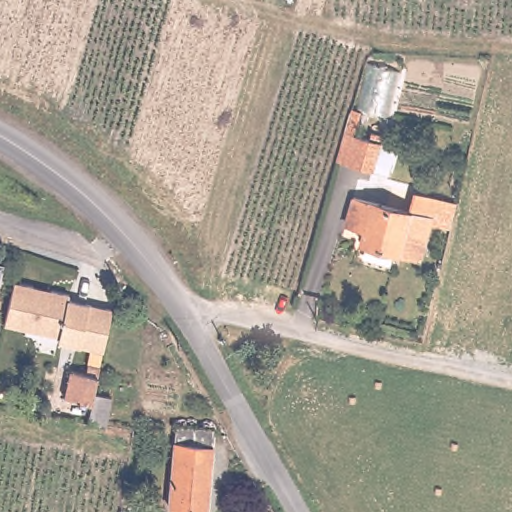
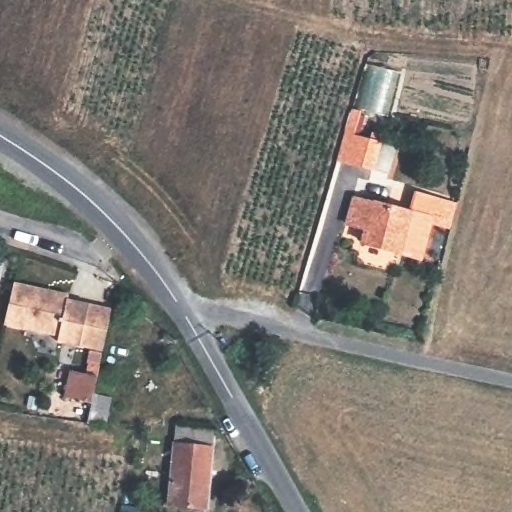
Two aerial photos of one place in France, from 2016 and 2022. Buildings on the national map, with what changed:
unchanged [(374,130),(381,133),(379,140),(381,141),(374,169),(354,164),(352,162),(338,158),(346,131),(359,135),(371,138),(374,130)]
unchanged [(415,206),(421,188),(454,197),(447,222),(434,218),(426,249),(406,243),(404,248),(367,237),(373,214),(358,210),(362,194),(378,198),(378,197),(415,206)]
unchanged [(0,286),(0,262),(5,263),(0,286)]
unchanged [(13,282),(70,294),(69,299),(109,307),(100,352),(56,341),(58,335),(4,324),(13,282)]
unchanged [(65,401),(71,374),(85,377),(88,367),(99,369),(98,373),(93,397),(110,401),(104,433),(86,430),(91,407),(65,401)]
unchanged [(175,425),(212,428),(210,448),(212,448),(206,508),(168,504),(175,425)]

